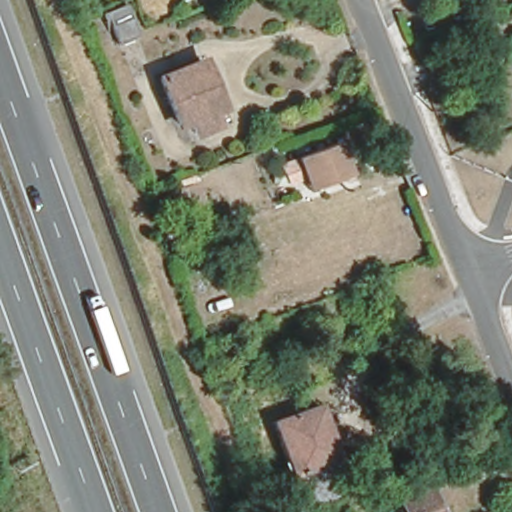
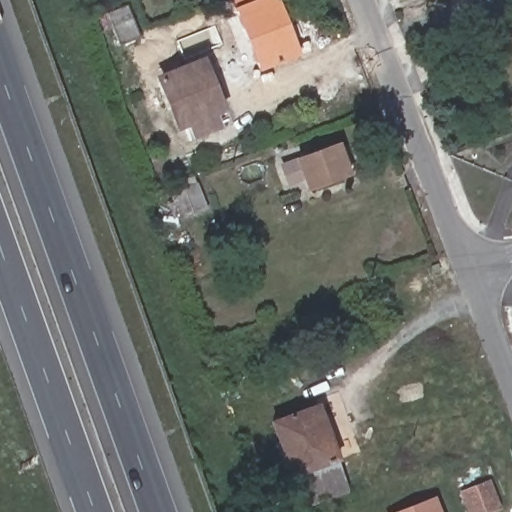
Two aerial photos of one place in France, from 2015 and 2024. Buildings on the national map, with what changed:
new [(234,9),(231,0),(277,0),(299,55),(259,72),(234,9)]
unchanged [(123,4),(137,36),(120,42),(107,10),(123,4)]
unchanged [(511,30),(512,30),(512,32),(511,30)]
unchanged [(200,52),(218,98),(205,102),(211,116),(194,123),(188,109),(179,112),(161,66),(200,52)]
unchanged [(335,138),(347,170),(306,186),(295,152),(335,138)]
unchanged [(323,400),(338,457),(292,479),(270,420),(323,400)]
unchanged [(304,512),(302,512),(292,479),(338,457),(350,496),(304,512)]
new [(498,508),(488,512),(470,512),(463,495),(489,485),(498,508)]
demolished [(440,512),(392,512),(402,508),(400,500),(431,488),(440,512)]
new [(415,512),(433,505),(436,512),(415,512)]

